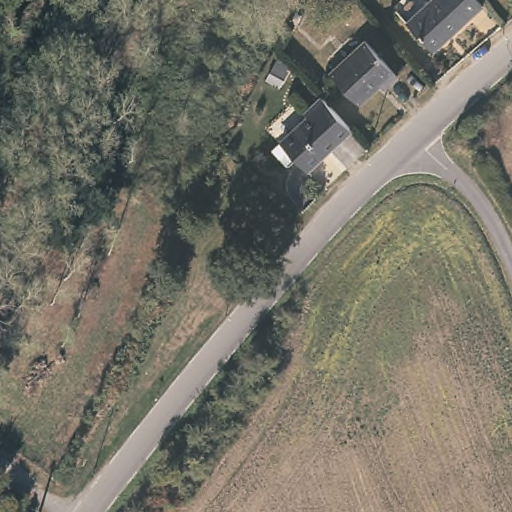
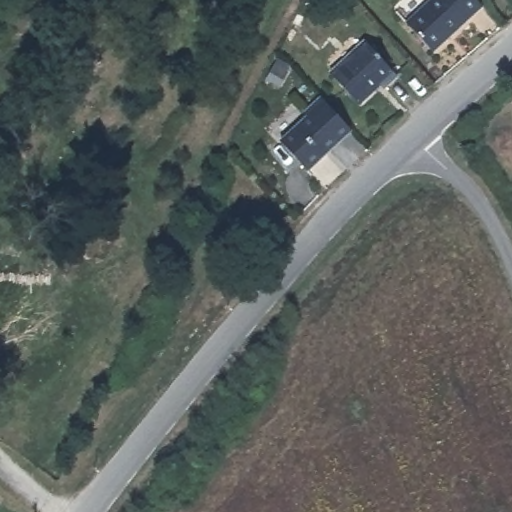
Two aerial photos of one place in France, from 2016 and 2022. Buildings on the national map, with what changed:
unchanged [(432,52),(405,22),(429,0),(478,0),(483,6),(432,52)]
unchanged [(398,76),(383,90),(379,85),(358,103),(330,72),(365,40),(398,76)]
unchanged [(348,129),(301,172),(274,140),(299,116),(296,112),(315,94),(348,129)]

